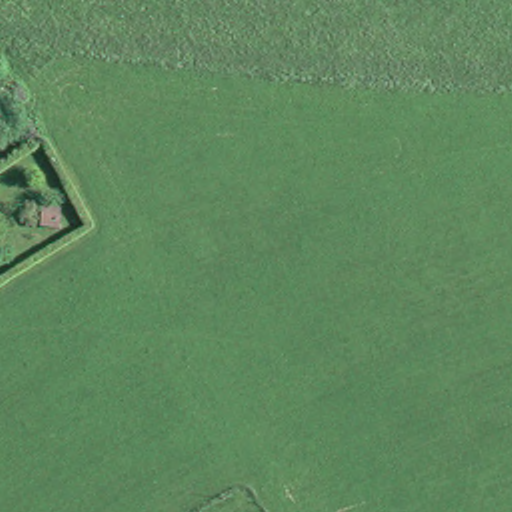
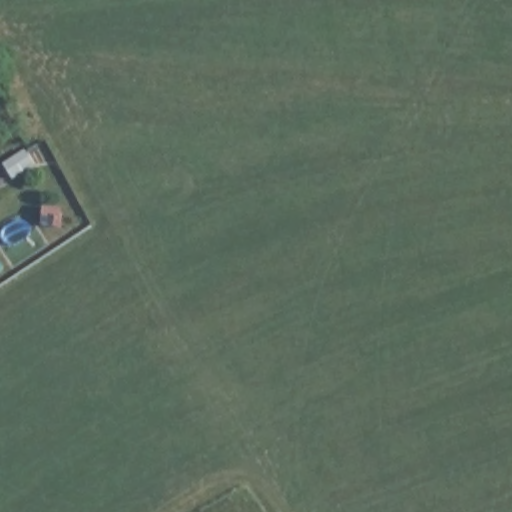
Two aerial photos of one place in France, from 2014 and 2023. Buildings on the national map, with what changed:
unchanged [(44,235),(41,247),(28,244),(30,232),(44,235)]

